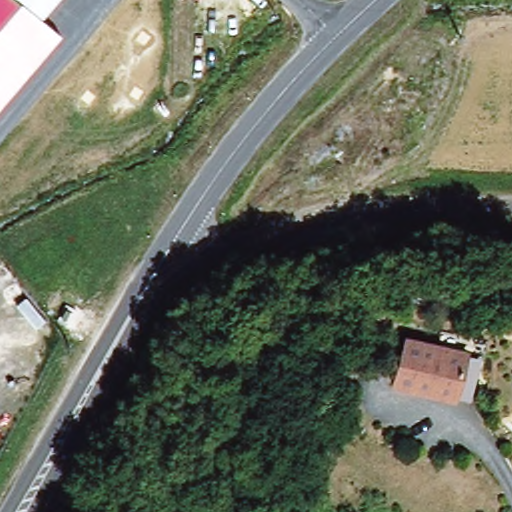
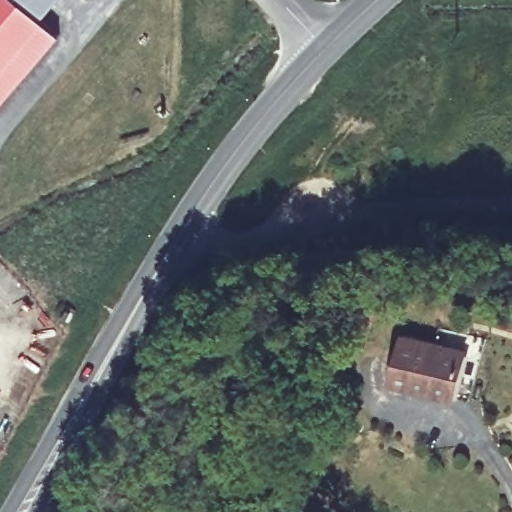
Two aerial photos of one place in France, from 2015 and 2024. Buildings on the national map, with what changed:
unchanged [(0,107),(0,0),(17,0),(41,20),(60,35),(0,107)]
unchanged [(17,0),(58,0),(41,20),(17,0)]
unchanged [(388,294),(379,322),(348,313),(356,285),(388,294)]
unchanged [(409,329),(471,343),(457,399),(394,381),(409,329)]

